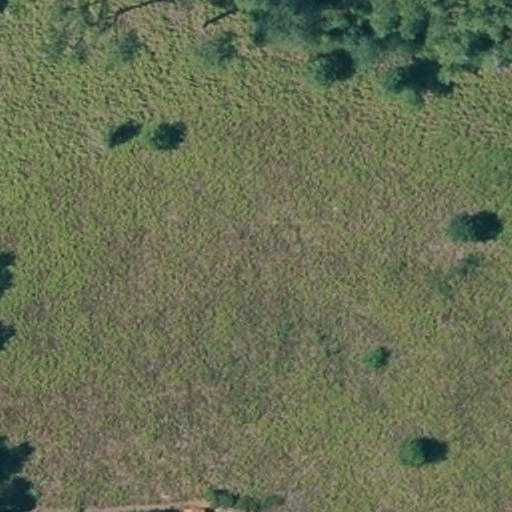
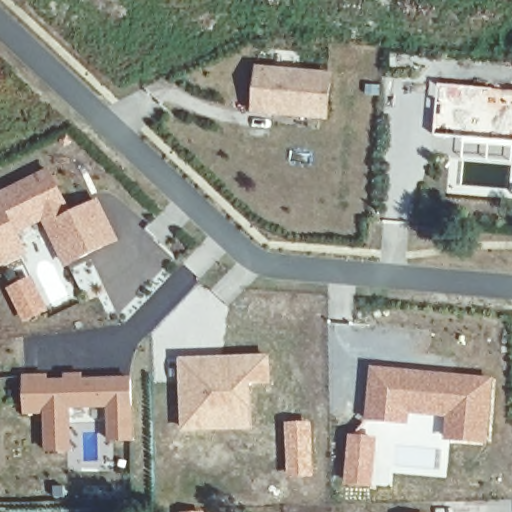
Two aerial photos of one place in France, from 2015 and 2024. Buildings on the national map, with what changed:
new [(326,114),(253,108),(257,66),(329,72),(326,114)]
new [(437,100),(438,81),(512,88),(512,139),(464,135),(434,132),(436,112),(437,100)]
new [(464,135),(512,139),(512,159),(462,155),(464,135)]
new [(0,263),(0,193),(47,169),(65,205),(69,213),(95,200),(102,214),(114,239),(100,246),(64,263),(49,233),(21,247),(23,251),(0,263)]
new [(182,425),(181,380),(180,357),(209,356),(219,356),(267,355),(267,378),(252,379),(247,383),(248,405),(249,423),(212,425),(182,425)]
new [(442,372),(452,373),(490,376),(485,438),(447,435),(450,411),(408,408),(407,419),(369,416),(373,366),(442,372)]
new [(108,440),(107,405),(67,407),(68,450),(45,450),(44,412),(24,412),(22,376),(45,375),(45,381),(69,380),(69,374),(84,374),(84,380),(129,378),(131,439),(108,440)]
new [(315,476),(290,477),(287,422),(312,421),(315,476)]
new [(375,487),(353,485),(353,479),(347,478),(351,434),(379,437),(375,487)]
unchanged [(176,512),(176,508),(196,506),(196,512),(176,512)]

